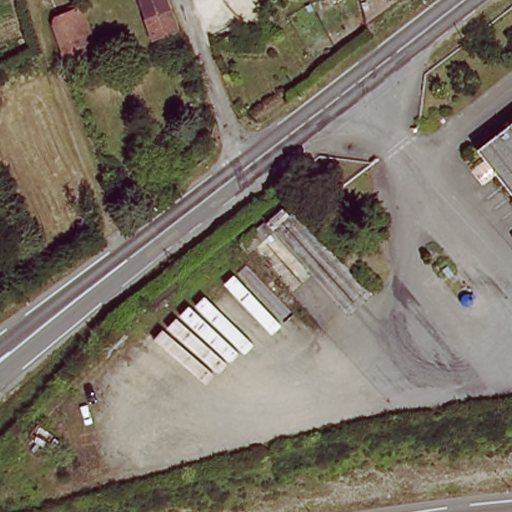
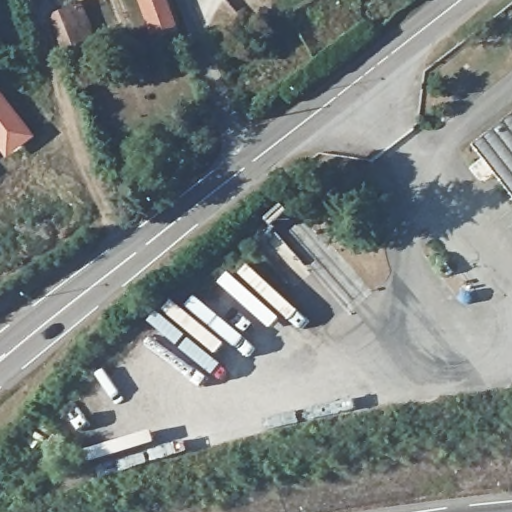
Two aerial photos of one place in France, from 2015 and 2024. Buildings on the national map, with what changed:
unchanged [(161,42),(156,32),(151,35),(139,0),(163,0),(173,26),(177,36),(161,42)]
unchanged [(83,60),(78,62),(79,69),(68,72),(55,41),(59,29),(83,19),(92,46),(95,55),(83,60)]
unchanged [(11,112),(5,98),(19,91),(25,106),(11,112)]
new [(0,165),(0,95),(33,139),(0,165)]
unchanged [(474,152),(512,123),(512,201),(474,152)]

